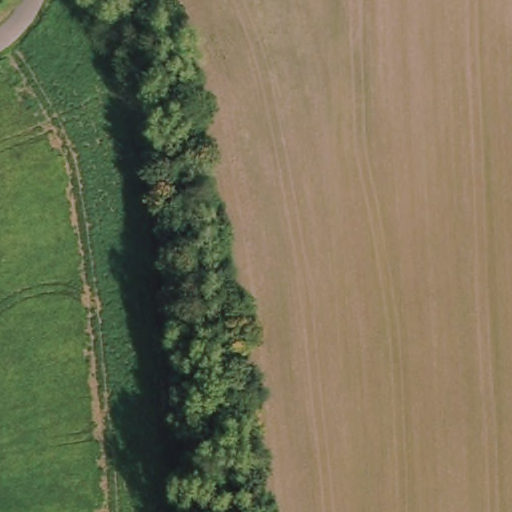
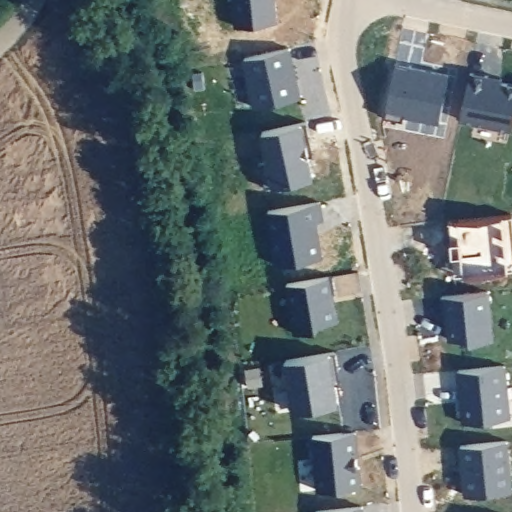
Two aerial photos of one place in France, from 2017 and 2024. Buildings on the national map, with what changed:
new [(280,18),(238,24),(237,0),(279,0),(280,18)]
new [(303,95),(255,108),(243,56),(290,45),(303,95)]
new [(440,120),(405,113),(403,118),(387,113),(388,107),(386,106),(396,59),(450,70),(440,120)]
new [(471,69),(502,75),(502,80),(512,82),(512,128),(461,117),(471,69)]
new [(275,181),(266,131),(302,125),(311,175),(275,181)]
new [(324,255),(276,263),(270,229),(291,205),(322,200),(325,218),(318,219),(324,255)]
new [(510,268),(465,272),(465,270),(455,273),(456,254),(453,255),(451,240),(453,239),(450,219),(503,214),(512,212),(512,267),(510,266),(510,268)]
new [(288,282),(331,275),(340,324),(297,331),(288,282)]
new [(470,333),(449,339),(443,295),(457,294),(490,290),(495,339),(487,340),(471,341),(470,333)]
new [(285,358),(331,351),(340,402),(293,410),(285,358)]
new [(512,414),(464,420),(459,368),(507,363),(512,409),(512,414)]
new [(360,451),(357,451),(358,461),(361,460),(363,483),(319,487),(313,431),(357,426),(360,451)]
new [(512,490),(465,494),(461,443),(508,438),(512,476),(512,490)]
new [(315,512),(315,509),(365,504),(365,512),(315,512)]

